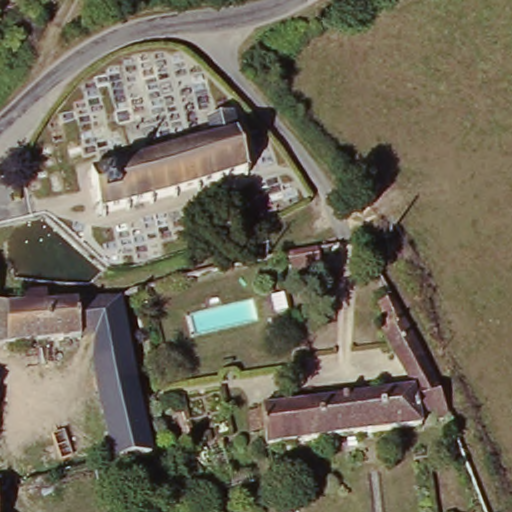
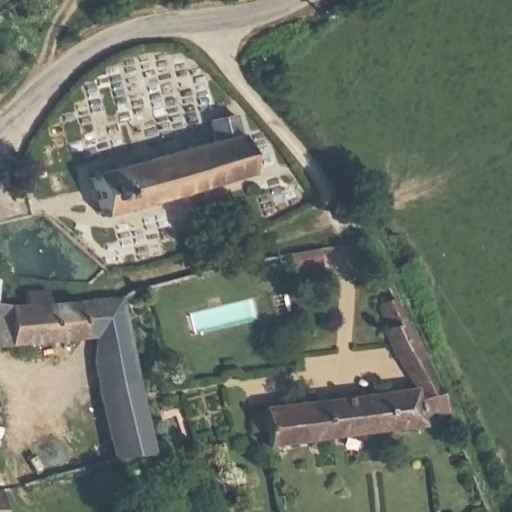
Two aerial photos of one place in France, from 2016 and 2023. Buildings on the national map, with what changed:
unchanged [(217,146),(213,119),(239,115),(253,187),(105,218),(96,169),(217,146)]
unchanged [(93,340),(0,351),(0,299),(25,300),(25,289),(52,287),(53,296),(122,289),(146,456),(109,461),(93,340)]
unchanged [(395,359),(381,331),(389,326),(385,317),(404,308),(422,345),(395,359)]
unchanged [(395,359),(422,345),(432,365),(441,386),(410,390),(395,359)]
unchanged [(243,412),(256,411),(256,409),(315,403),(410,390),(441,386),(456,422),(440,425),(440,417),(422,421),(423,430),(320,442),(260,450),(259,441),(258,432),(245,433),(243,412)]

